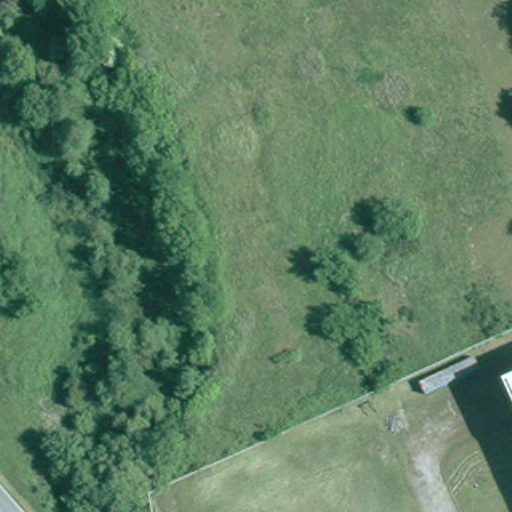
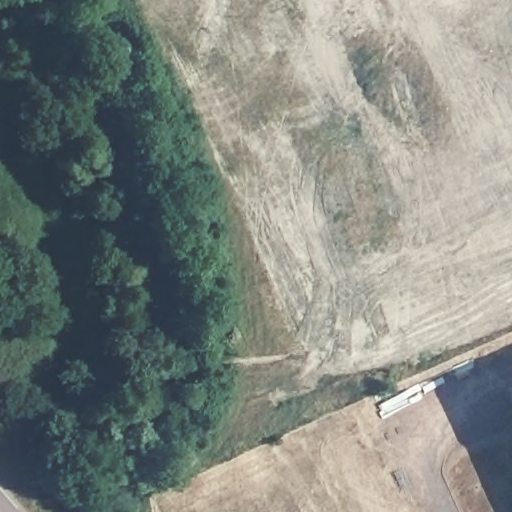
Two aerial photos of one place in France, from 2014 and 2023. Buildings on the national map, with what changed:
unchanged [(512,379),(512,387),(509,380),(512,379)]

